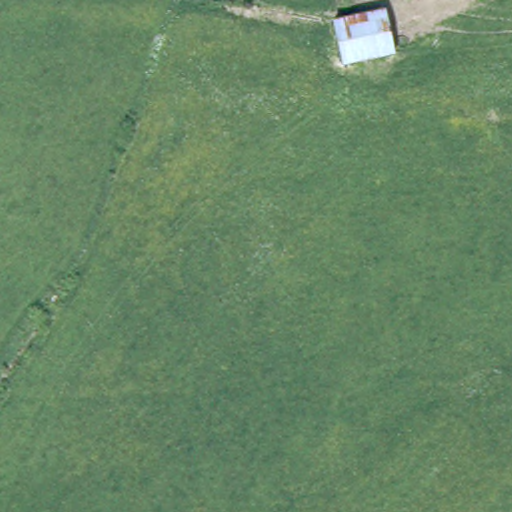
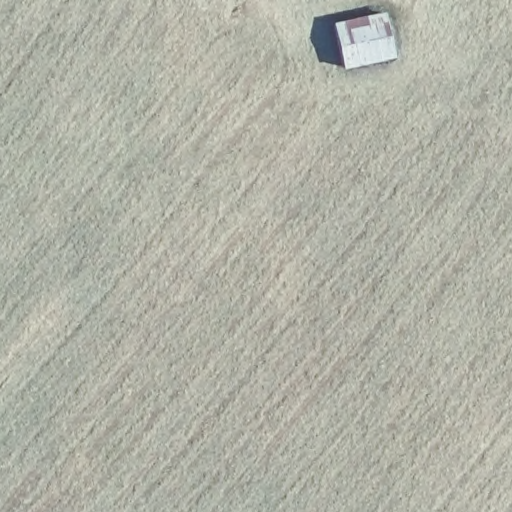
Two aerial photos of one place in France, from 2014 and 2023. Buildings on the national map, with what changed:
unchanged [(384,13),(394,55),(343,67),(333,25),(384,13)]

